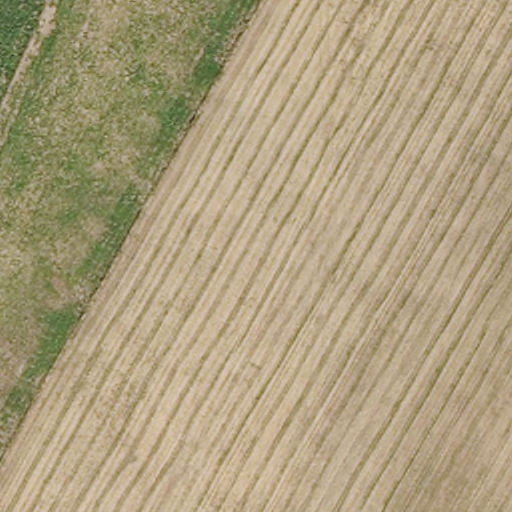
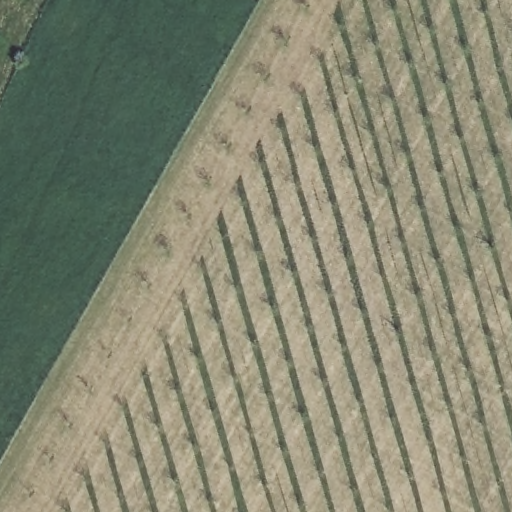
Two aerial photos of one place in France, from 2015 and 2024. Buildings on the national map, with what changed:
[]

